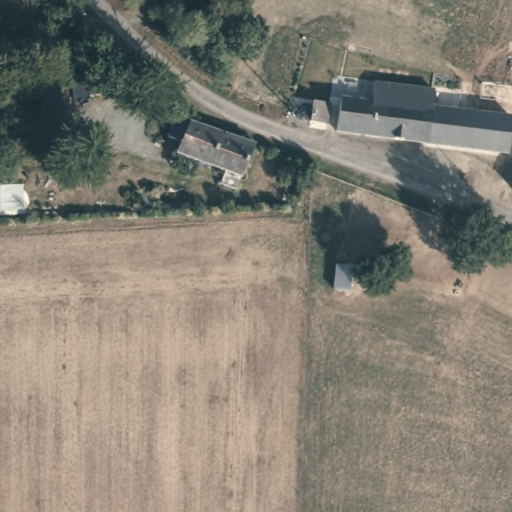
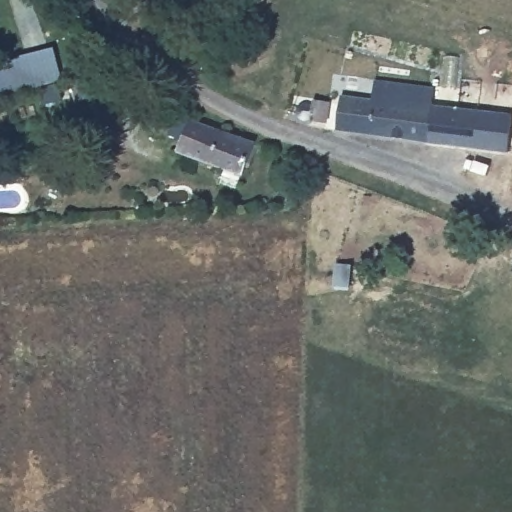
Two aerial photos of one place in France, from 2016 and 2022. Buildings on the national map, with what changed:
new [(53,47),(62,80),(3,94),(0,81),(0,60),(53,47)]
unchanged [(82,98),(76,78),(107,69),(113,89),(82,98)]
unchanged [(375,80),(434,87),(432,105),(512,114),(512,130),(510,130),(508,149),(338,126),(341,95),(373,99),(375,80)]
unchanged [(47,107),(43,95),(63,89),(66,102),(47,107)]
unchanged [(302,120),(301,119),(297,118),(295,117),(295,116),(294,113),(294,109),(295,107),(296,105),(299,103),(304,102),(307,103),(312,105),(312,100),(326,100),(326,121),(312,120),(308,119),(302,120)]
unchanged [(185,153),(189,139),(176,135),(182,116),(197,121),(229,131),(259,142),(249,174),(185,153)]
unchanged [(336,290),(336,264),(350,264),(350,290),(336,290)]

